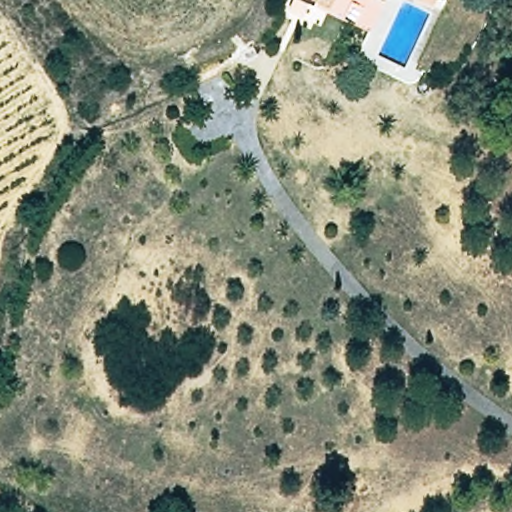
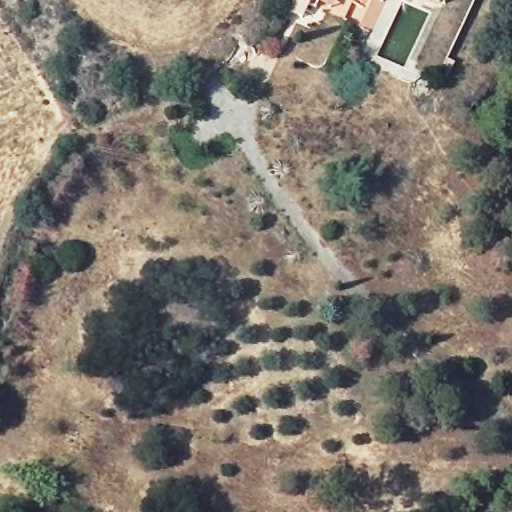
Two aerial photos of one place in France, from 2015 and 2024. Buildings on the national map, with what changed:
unchanged [(333,0),(330,6),(320,0),(333,0)]

